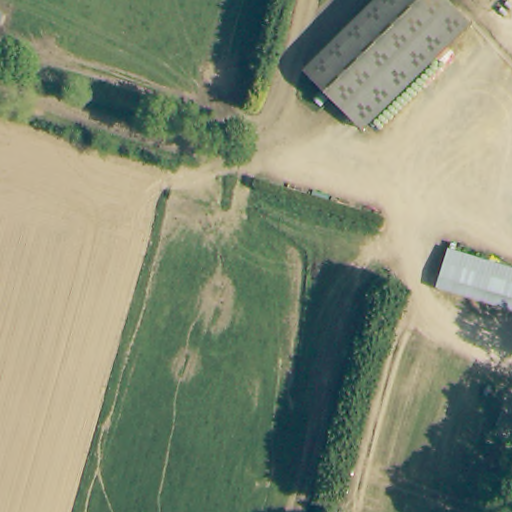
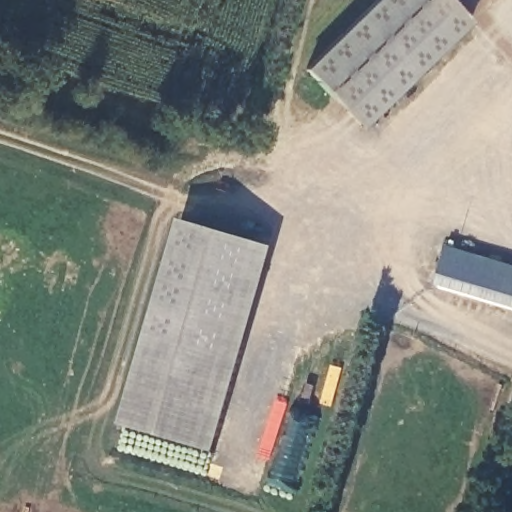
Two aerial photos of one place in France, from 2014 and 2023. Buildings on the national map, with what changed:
unchanged [(304,69),(374,0),(450,0),(472,23),(362,129),(304,69)]
new [(120,425),(181,221),(275,249),(214,453),(120,425)]
unchanged [(512,295),(448,277),(457,242),(512,257),(512,295)]

